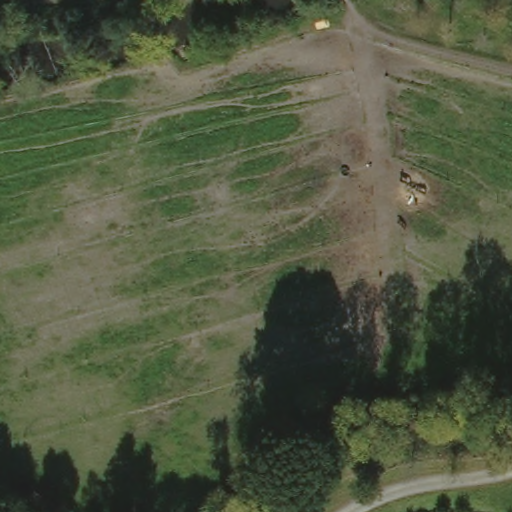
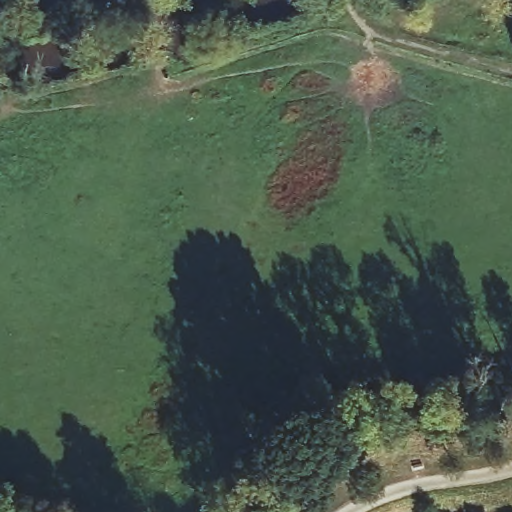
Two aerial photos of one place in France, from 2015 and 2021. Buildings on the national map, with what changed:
[]

